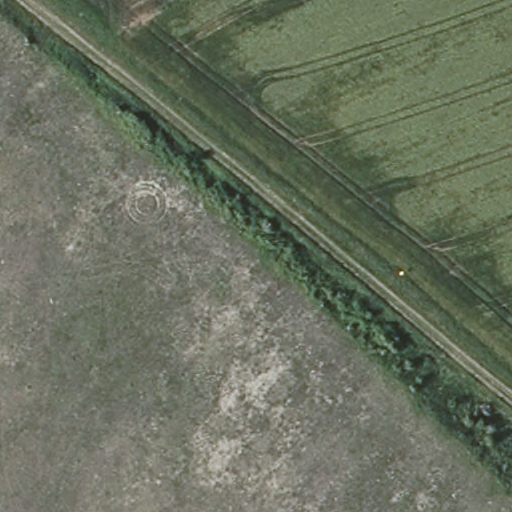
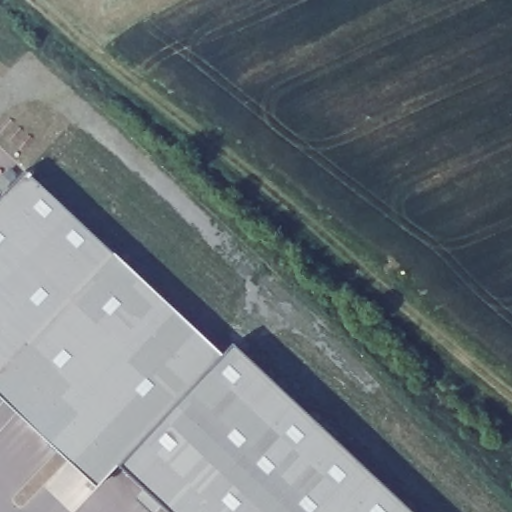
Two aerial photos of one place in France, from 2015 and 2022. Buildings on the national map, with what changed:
new [(162,504),(156,512),(150,512),(135,498),(145,489),(119,464),(97,486),(0,396),(0,197),(25,170),(222,355),(234,343),(413,512),(171,512),(162,504)]

